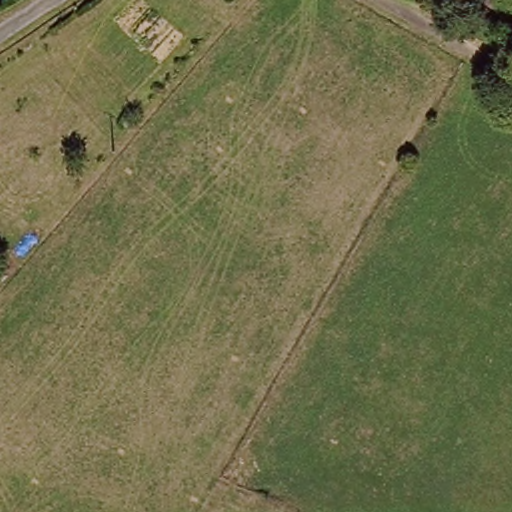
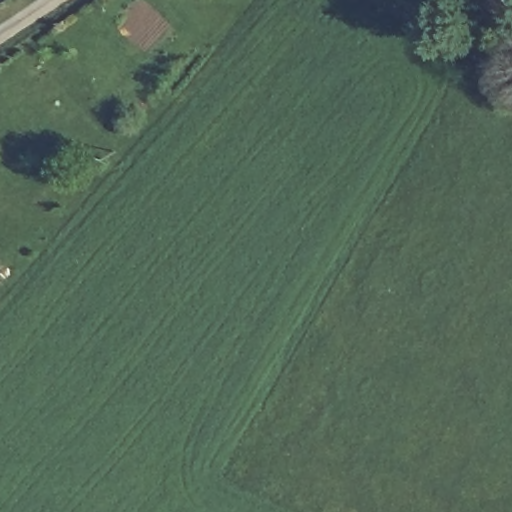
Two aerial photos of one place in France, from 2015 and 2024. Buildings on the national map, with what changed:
[]

